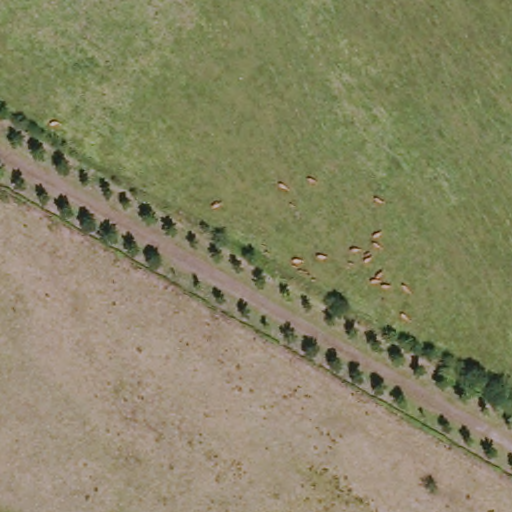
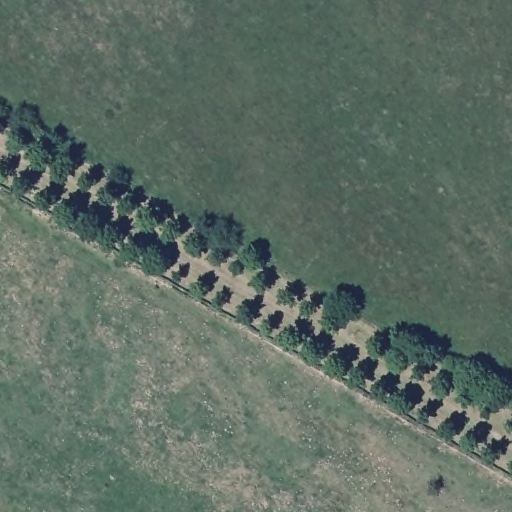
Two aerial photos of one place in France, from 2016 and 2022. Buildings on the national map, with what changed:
[]

